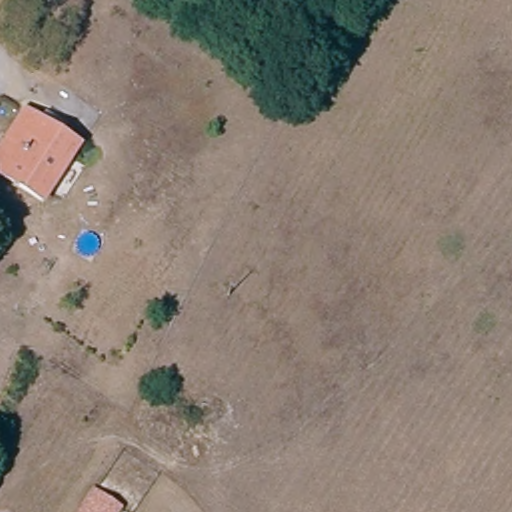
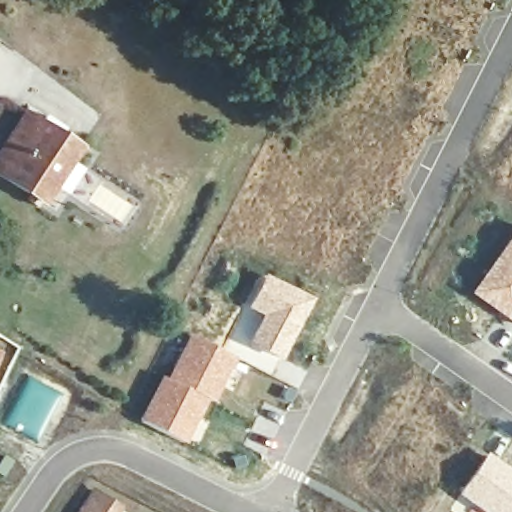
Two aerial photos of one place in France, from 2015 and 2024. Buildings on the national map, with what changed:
unchanged [(0,170),(0,155),(29,113),(43,123),(80,149),(76,156),(49,199),(0,170)]
new [(512,326),(467,294),(512,231),(512,326)]
new [(230,356),(232,352),(235,353),(240,343),(245,346),(245,344),(261,317),(246,309),(263,274),(313,299),(280,361),(272,376),(234,358),(210,402),(207,401),(165,378),(189,334),(230,356)]
new [(4,352),(0,359),(0,350),(4,352)]
new [(160,376),(165,378),(207,401),(182,444),(138,419),(160,376)]
new [(512,471),(512,512),(481,512),(457,495),(486,453),(512,471)]
unchanged [(121,512),(73,512),(88,489),(121,512)]

